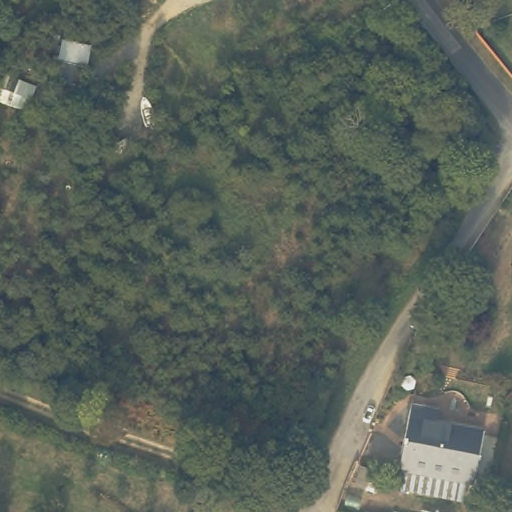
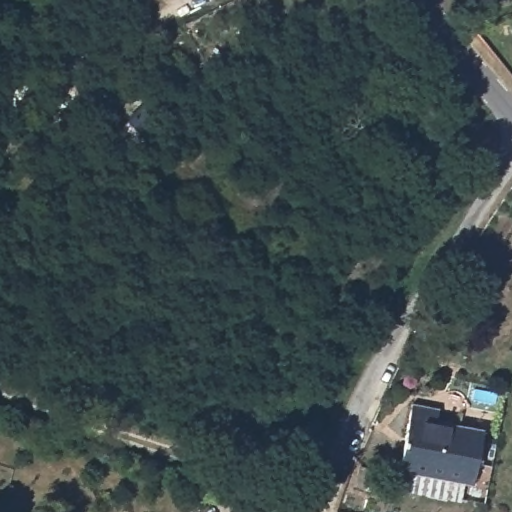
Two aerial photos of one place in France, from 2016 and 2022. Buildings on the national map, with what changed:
unchanged [(215,171),(233,177),(222,206),(205,198),(215,171)]
unchanged [(474,479),(466,478),(405,469),(401,468),(409,404),(426,406),(437,408),(436,421),(481,428),(474,479)]
unchanged [(375,469),(372,483),(354,480),(356,467),(375,469)]
unchanged [(465,498),(405,488),(405,469),(466,478),(465,498)]

